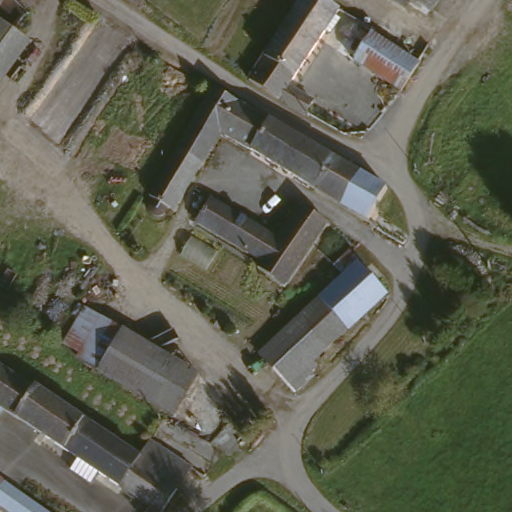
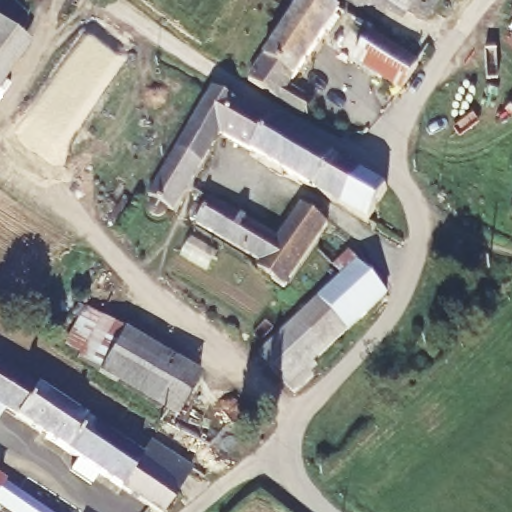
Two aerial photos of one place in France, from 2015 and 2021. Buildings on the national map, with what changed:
unchanged [(306,0),(342,0),(347,4),(300,79),(322,94),(321,96),(312,109),(282,90),(260,76),(257,73),(306,0)]
unchanged [(430,8),(415,0),(411,6),(402,0),(435,0),(430,8)]
unchanged [(0,23),(27,41),(0,81),(0,23)]
unchanged [(335,54),(355,25),(358,26),(373,36),(419,67),(401,93),(400,95),(335,54)]
unchanged [(224,134),(206,164),(180,149),(216,86),(243,102),(224,134)]
unchanged [(336,155),(340,157),(321,191),(224,134),(243,102),(336,155)]
unchanged [(180,209),(171,204),(172,209),(170,213),(167,216),(161,216),(157,214),(155,211),(155,208),(155,205),(157,201),(159,197),(154,194),(180,149),(206,164),(180,209)]
unchanged [(348,206),(321,191),(340,157),(365,172),(348,206)]
unchanged [(382,224),(375,220),(348,206),(365,172),(390,187),(391,188),(380,210),(388,214),(382,224)]
unchanged [(260,259),(196,221),(210,197),(276,235),(300,201),(330,220),(286,284),(256,264),(260,259)]
unchanged [(312,374),(294,391),(257,352),(285,326),(342,273),(335,263),(349,251),(356,260),(386,292),(368,309),(306,367),(312,374)]
unchanged [(77,358),(80,352),(64,342),(85,305),(102,315),(201,372),(175,414),(77,358)]
unchanged [(79,458),(4,408),(0,413),(0,364),(34,387),(36,385),(141,454),(137,460),(179,487),(164,512),(163,512),(160,512),(99,472),(91,483),(71,469),(79,458)]
unchanged [(192,465),(179,487),(137,460),(141,454),(151,439),(192,465)]
unchanged [(0,483),(0,477),(3,479),(0,483)]
unchanged [(0,491),(6,482),(49,512),(14,512),(0,502),(0,491)]

